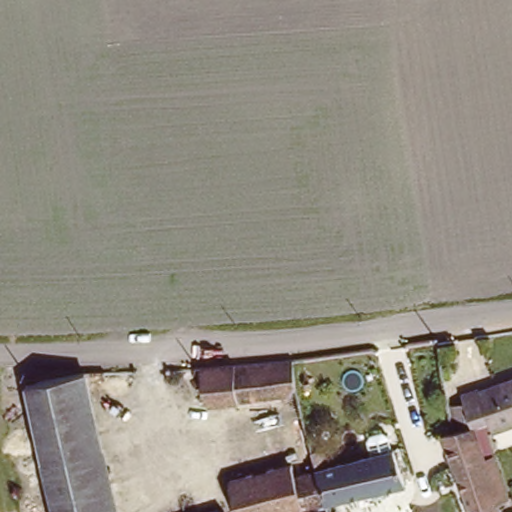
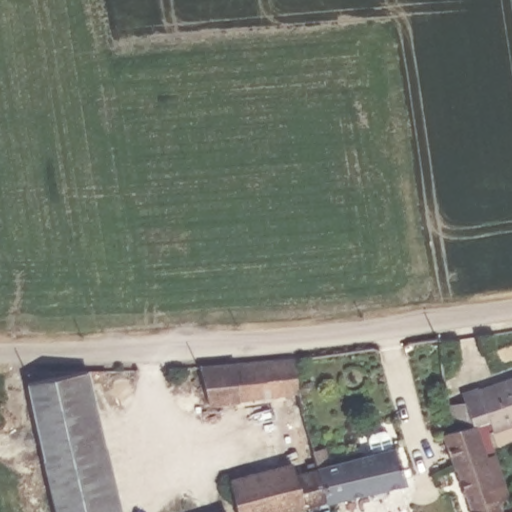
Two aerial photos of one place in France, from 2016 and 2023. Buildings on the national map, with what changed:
unchanged [(297,417),(288,418),(286,396),(203,405),(194,368),(290,357),(297,417)]
unchanged [(88,371),(119,512),(49,512),(17,389),(88,371)]
unchanged [(497,503),(500,512),(471,512),(444,436),(454,433),(451,407),(468,403),(464,394),(481,388),(481,390),(512,380),(512,425),(494,431),(491,420),(476,426),(486,457),(493,455),(508,500),(497,503)]
unchanged [(306,453),(319,450),(323,467),(391,448),(401,485),(376,490),(378,498),(363,502),(361,494),(318,505),(309,471),(306,453)]
unchanged [(286,466),(289,477),(309,471),(318,505),(284,512),(231,512),(224,482),(286,466)]

